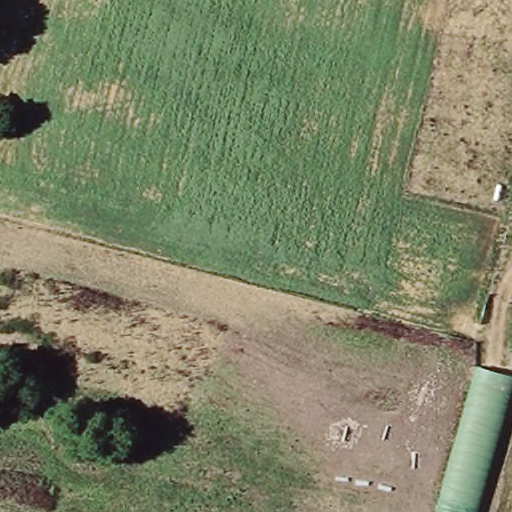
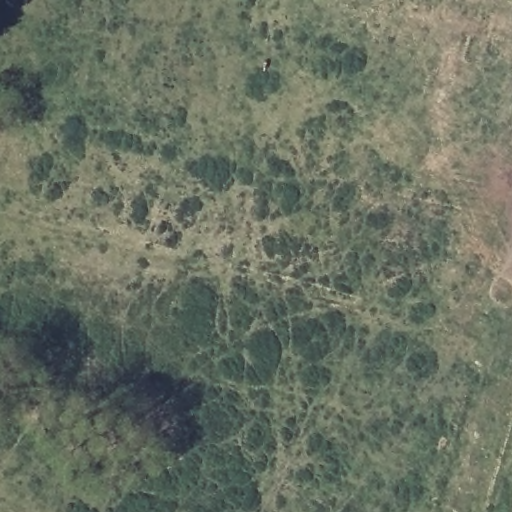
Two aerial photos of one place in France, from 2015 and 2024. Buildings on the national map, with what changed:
demolished [(512,379),(512,398),(479,512),(433,512),(473,366),(512,379)]

